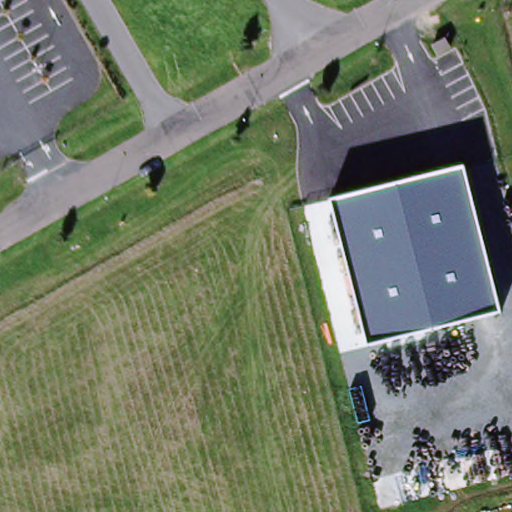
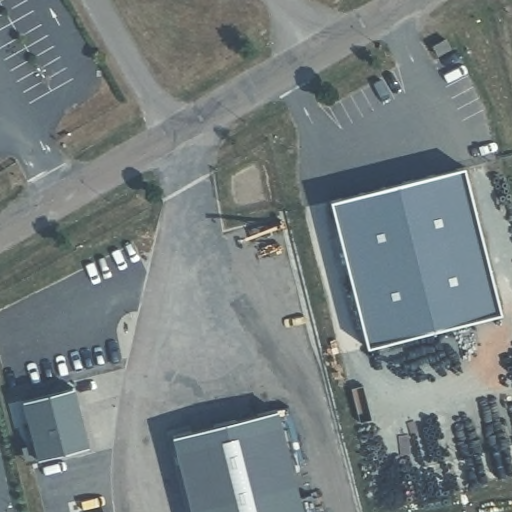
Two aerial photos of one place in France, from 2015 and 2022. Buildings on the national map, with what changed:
unchanged [(440,57),(435,47),(447,41),(452,50),(440,57)]
unchanged [(331,199),(464,167),(501,312),(367,345),(331,199)]
new [(67,385),(82,444),(31,457),(16,397),(67,385)]
new [(270,399),(299,512),(137,512),(120,435),(270,399)]

